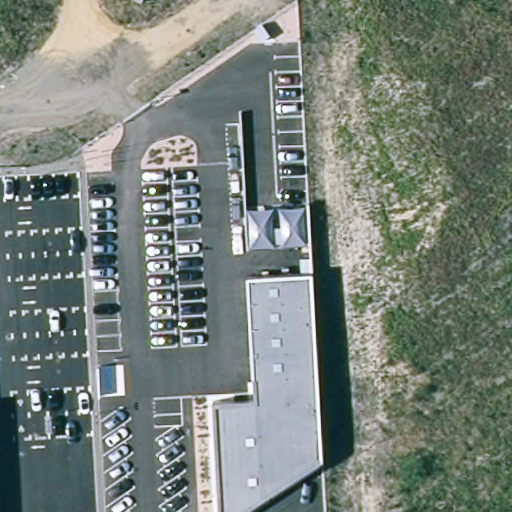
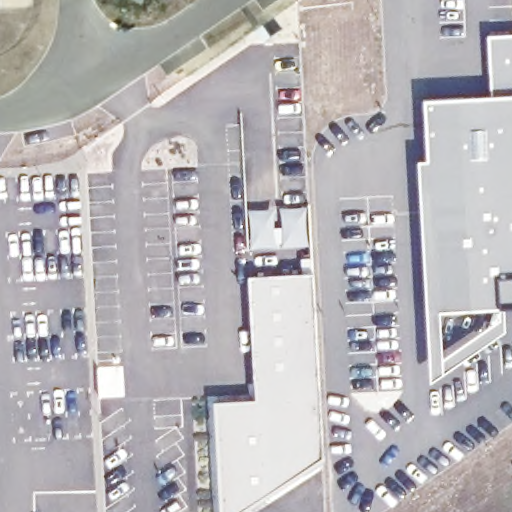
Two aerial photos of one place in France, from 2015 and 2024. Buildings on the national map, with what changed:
new [(512,33),(512,310),(425,313),(417,161),(426,160),(422,99),(490,96),(487,35),(512,33)]
unchanged [(308,246),(250,249),(247,210),(274,208),(275,227),(281,227),(279,208),(306,207),(308,246)]
unchanged [(246,512),(220,512),(214,402),(255,400),(247,276),(312,273),(325,461),(246,512)]

